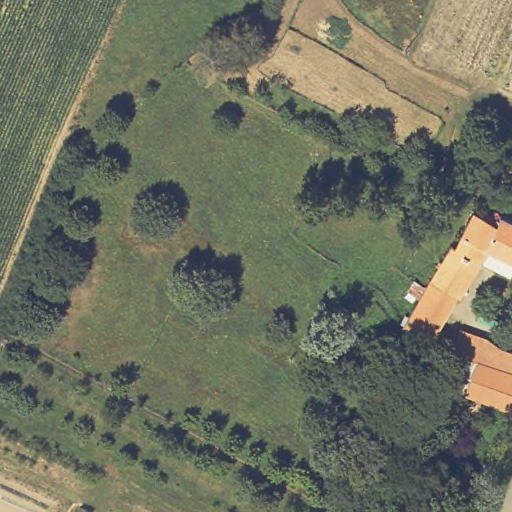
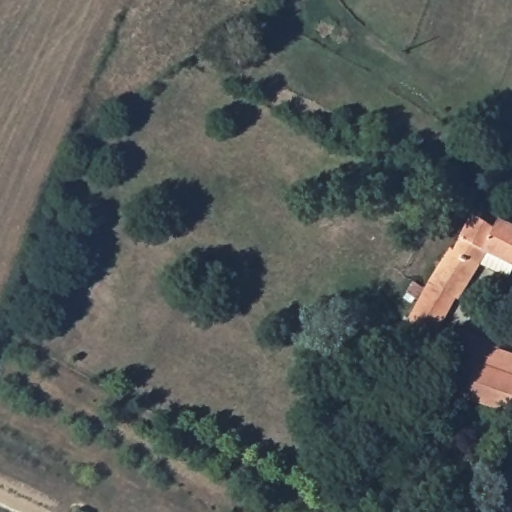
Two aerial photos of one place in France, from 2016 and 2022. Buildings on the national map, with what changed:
unchanged [(462,294),(460,292),(435,338),(409,322),(455,243),(457,245),(477,209),(500,223),(504,215),(512,219),(512,273),(482,259),(462,294)]
unchanged [(457,328),(485,338),(496,347),(510,351),(512,352),(512,375),(450,352),(457,328)]
unchanged [(468,379),(443,371),(450,352),(512,375),(512,412),(463,397),(468,379)]

